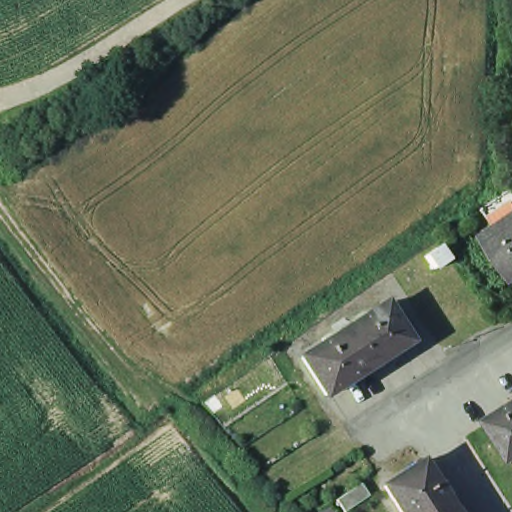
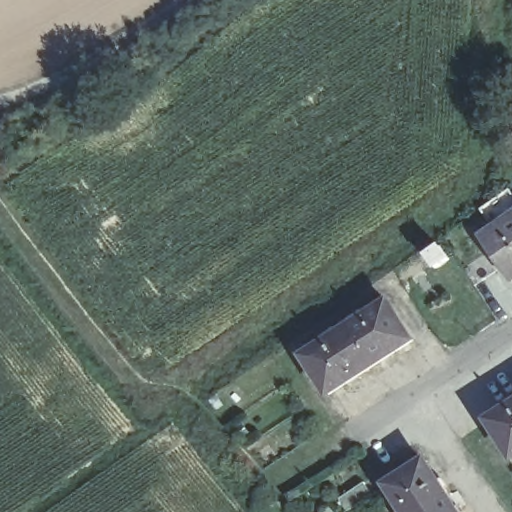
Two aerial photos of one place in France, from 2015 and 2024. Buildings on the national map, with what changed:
unchanged [(501,232),(487,213),(512,196),(512,279),(486,241),(501,232)]
unchanged [(418,340),(335,393),(310,355),(346,333),(343,328),(355,321),(358,325),(394,303),(418,340)]
unchanged [(512,409),(512,450),(494,420),(512,409)]
unchanged [(430,456),(453,492),(458,489),(466,502),(461,505),(466,512),(412,512),(392,480),(430,456)]
unchanged [(370,478),(378,489),(352,506),(345,496),(370,478)]
unchanged [(344,512),(326,512),(337,503),(344,512)]

